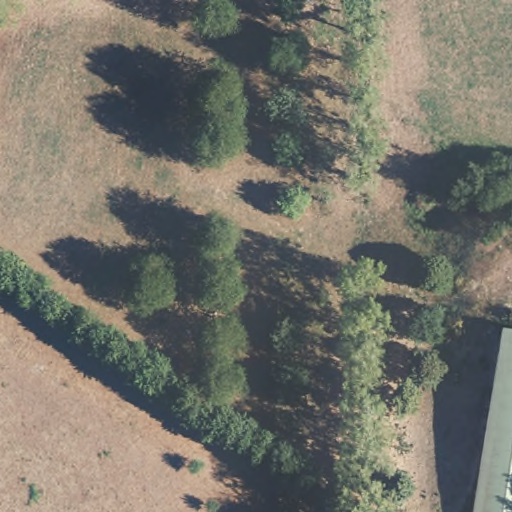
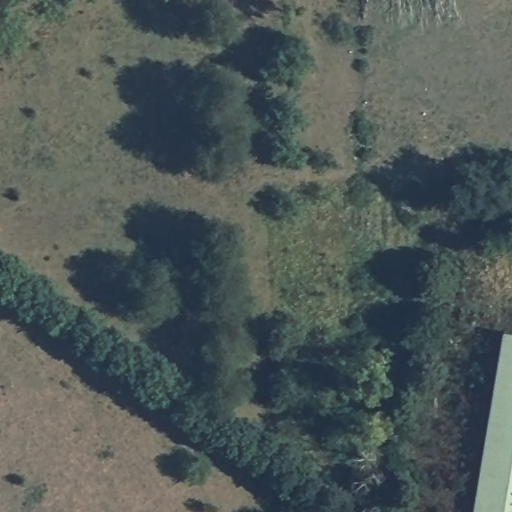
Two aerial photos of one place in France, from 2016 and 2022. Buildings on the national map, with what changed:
unchanged [(512,326),(512,512),(474,512),(506,325),(512,326)]

